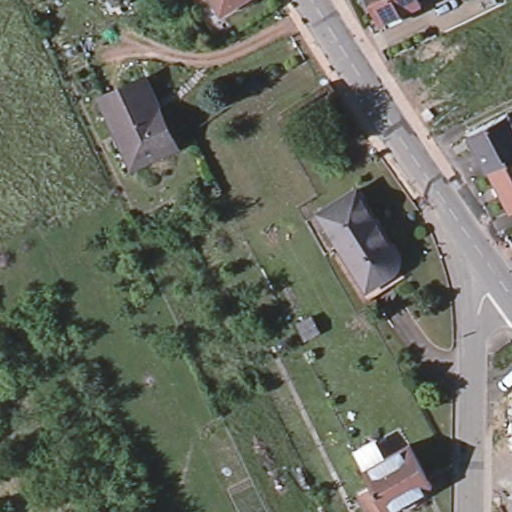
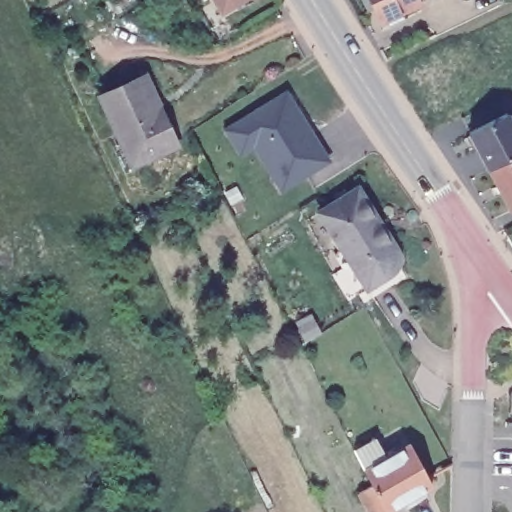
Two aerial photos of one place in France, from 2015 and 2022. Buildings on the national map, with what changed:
unchanged [(211,0),(240,0),(219,13),(211,0)]
unchanged [(422,4),(423,5),(403,14),(405,19),(389,27),(387,23),(382,24),(370,0),(420,0),(421,1),(422,4)]
unchanged [(430,0),(422,4),(421,1),(420,0),(430,0)]
unchanged [(141,81),(156,114),(159,113),(174,145),(149,156),(146,151),(117,91),(141,81)]
new [(332,161),(281,193),(254,149),(240,156),(223,128),(287,89),(332,161)]
unchanged [(117,91),(146,151),(131,159),(103,98),(117,91)]
unchanged [(512,123),(512,152),(486,165),(467,129),(506,110),(512,123)]
unchanged [(507,208),(486,165),(512,152),(512,206),(507,208)]
unchanged [(317,205),(357,184),(393,249),(394,254),(393,260),(388,268),(379,272),(384,282),(356,297),(330,252),(340,246),(317,205)]
unchanged [(409,445),(431,487),(408,499),(386,457),(409,445)]
unchanged [(363,469),(386,457),(408,499),(384,511),(382,512),(365,512),(355,492),(371,484),(363,469)]

